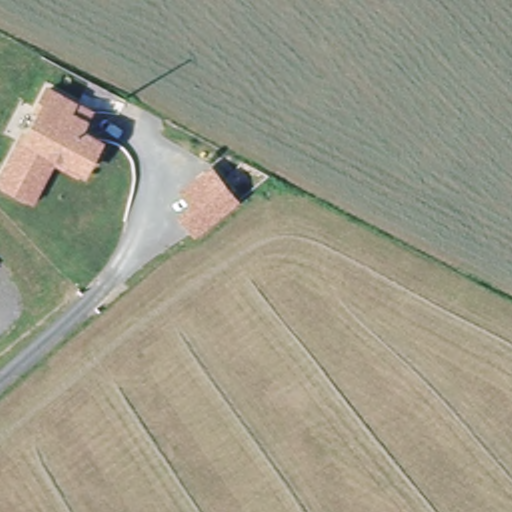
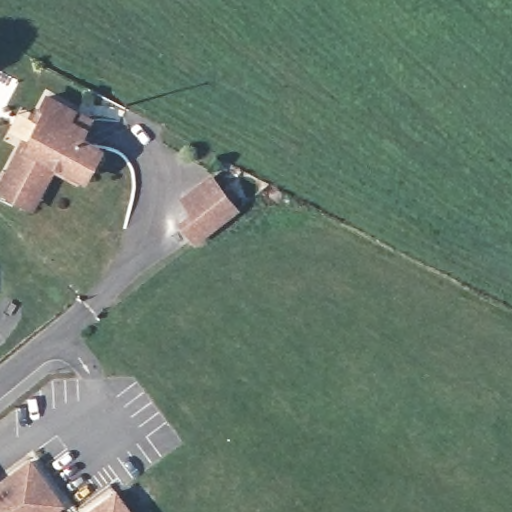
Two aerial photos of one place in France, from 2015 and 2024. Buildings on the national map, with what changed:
unchanged [(21,196),(0,185),(0,176),(3,170),(12,156),(24,143),(40,114),(35,110),(45,90),(69,102),(85,110),(81,119),(76,131),(94,140),(80,170),(52,156),(29,200),(21,196)]
unchanged [(242,204),(191,245),(175,226),(200,206),(190,194),(202,184),(216,171),(242,204)]
new [(0,512),(0,479),(31,457),(64,502),(51,512),(0,512)]
new [(130,512),(90,512),(115,493),(130,512)]

